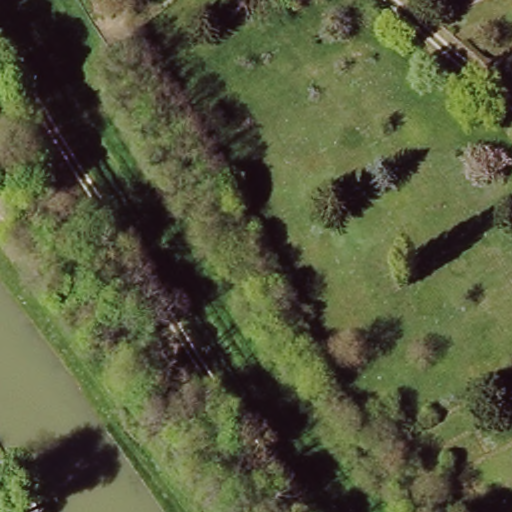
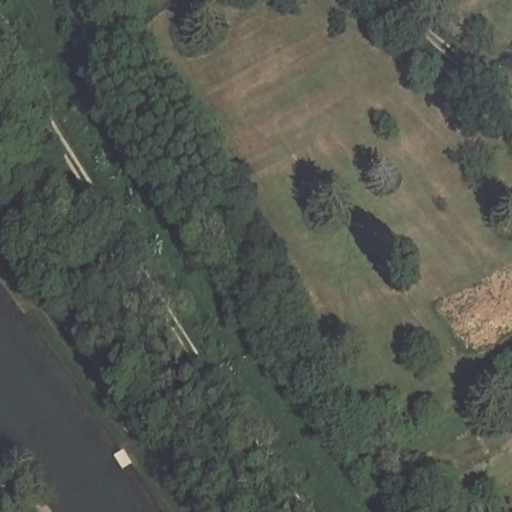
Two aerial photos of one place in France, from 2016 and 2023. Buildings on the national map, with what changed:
unchanged [(479,0),(481,0),(479,1),(479,0)]

